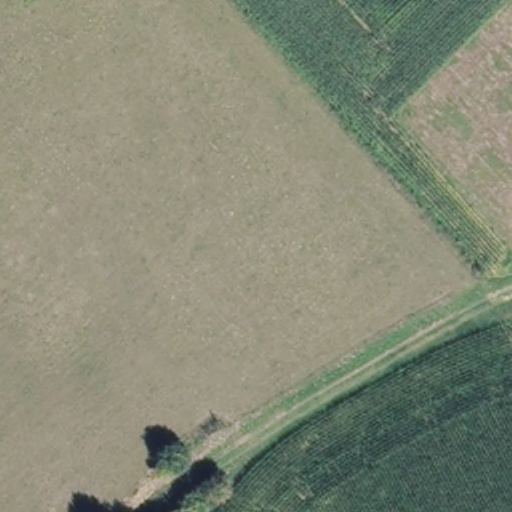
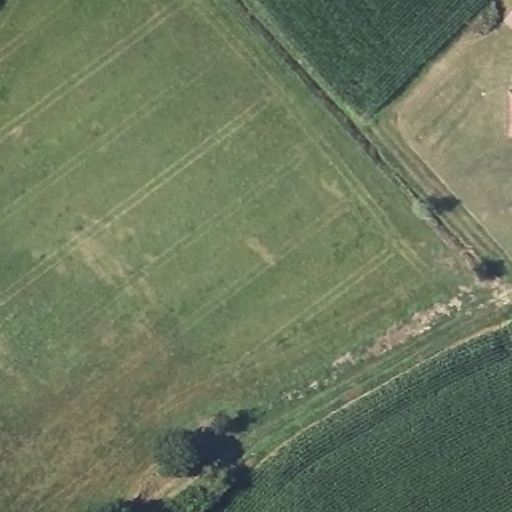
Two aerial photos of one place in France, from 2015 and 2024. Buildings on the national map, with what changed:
new [(507,132),(508,85),(512,85),(512,132),(507,132)]

